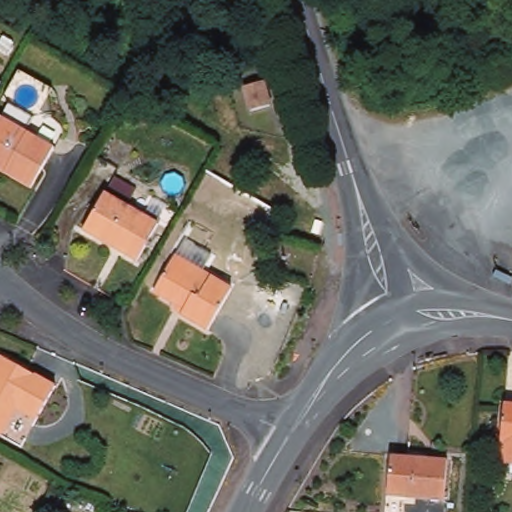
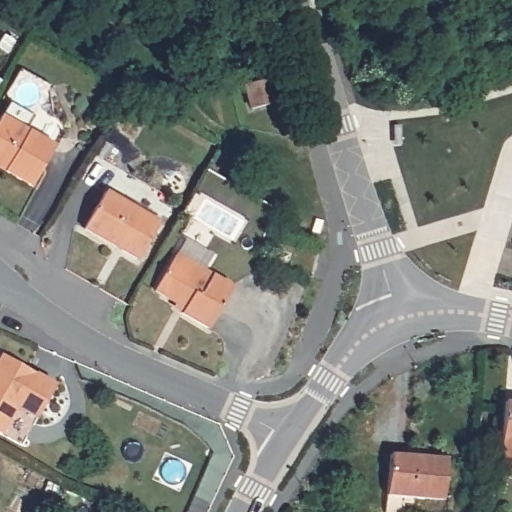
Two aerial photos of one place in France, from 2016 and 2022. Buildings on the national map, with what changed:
unchanged [(251,104),(232,110),(223,84),(241,78),(251,104)]
unchanged [(30,192),(0,174),(0,120),(52,151),(30,192)]
unchanged [(156,224),(136,262),(78,229),(98,190),(156,224)]
unchanged [(285,224),(301,229),(299,238),(283,233),(285,224)]
unchanged [(229,290),(209,334),(178,316),(181,310),(150,292),(168,255),(229,290)]
unchanged [(33,422),(14,412),(4,434),(0,432),(0,366),(47,392),(33,422)]
unchanged [(512,405),(512,467),(498,465),(508,405),(512,405)]
unchanged [(438,504),(386,496),(392,455),(445,462),(438,504)]

